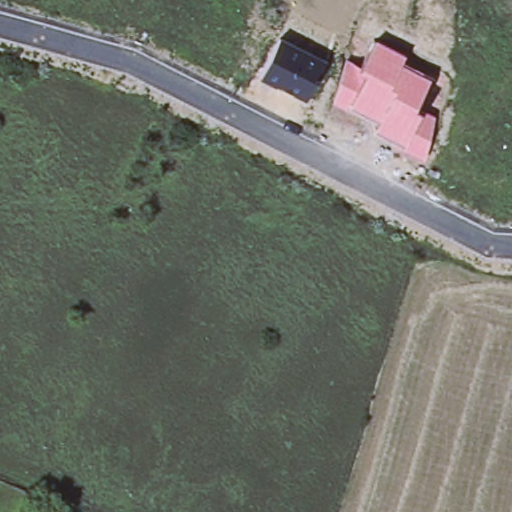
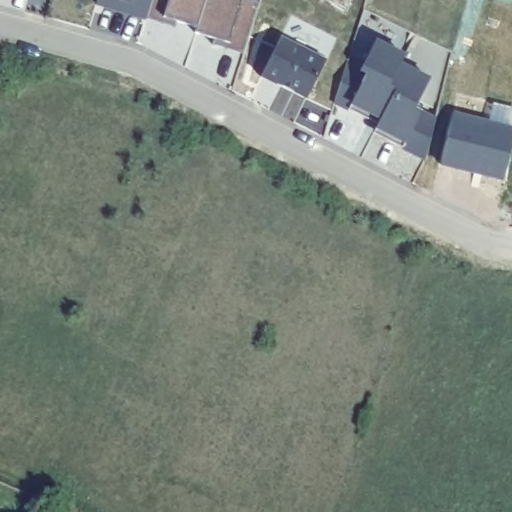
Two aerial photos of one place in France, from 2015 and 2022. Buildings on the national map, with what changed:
new [(147,16),(145,20),(95,6),(96,0),(151,0),(147,16)]
new [(151,0),(247,0),(257,3),(243,53),(196,39),(197,27),(197,28),(147,16),(151,0)]
unchanged [(260,77),(282,38),(326,60),(305,100),(260,77)]
unchanged [(395,149),(398,144),(372,132),(377,122),(352,108),(350,112),(333,104),(347,58),(360,68),(375,39),(406,53),(402,62),(432,76),(418,104),(437,115),(425,162),(395,149)]
new [(512,126),(512,155),(506,180),(442,166),(455,110),(512,126)]

